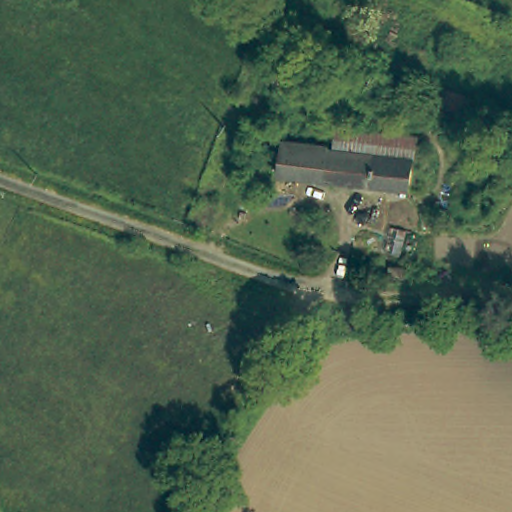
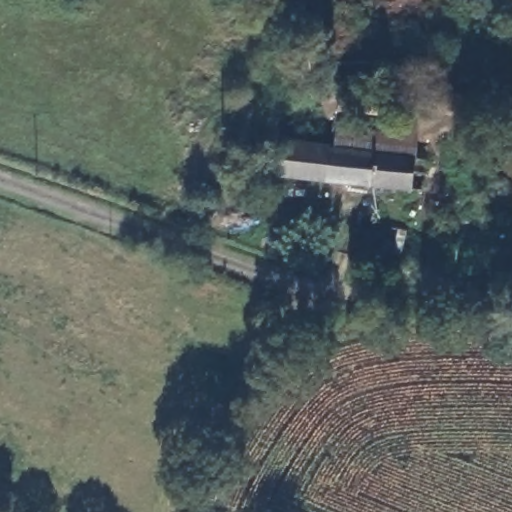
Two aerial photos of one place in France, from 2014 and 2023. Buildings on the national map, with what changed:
unchanged [(333,122),(412,131),(410,152),(331,142),(333,122)]
unchanged [(273,172),(276,136),(310,140),(331,142),(410,152),(419,153),(418,166),(416,186),(273,172)]
unchanged [(384,245),(388,248),(389,252),(388,257),(386,261),(382,264),(377,263),(373,260),(371,255),(370,250),(372,246),(376,243),(380,243),(384,245)]

